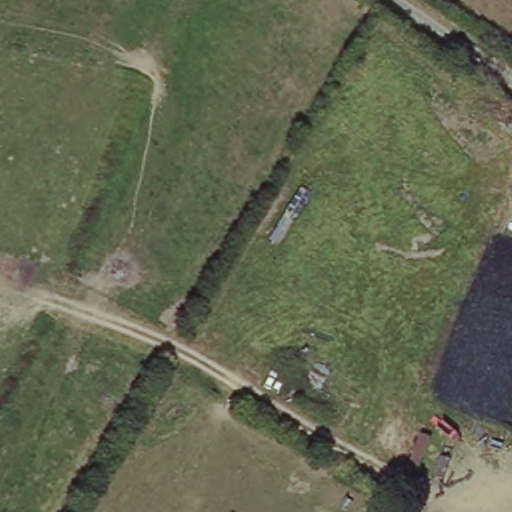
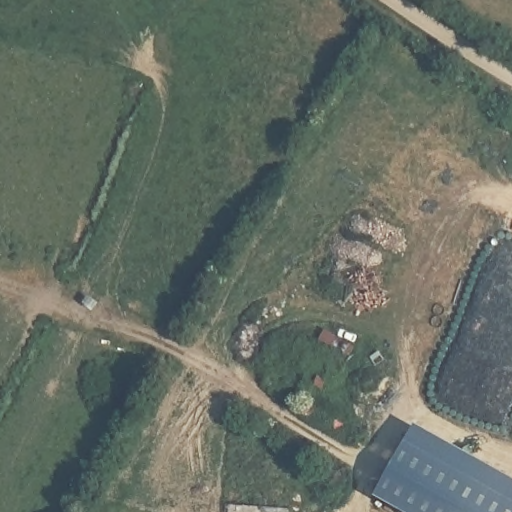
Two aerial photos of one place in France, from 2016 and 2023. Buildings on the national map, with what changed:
new [(406,512),(377,496),(417,424),(512,476),(512,512),(406,512)]

